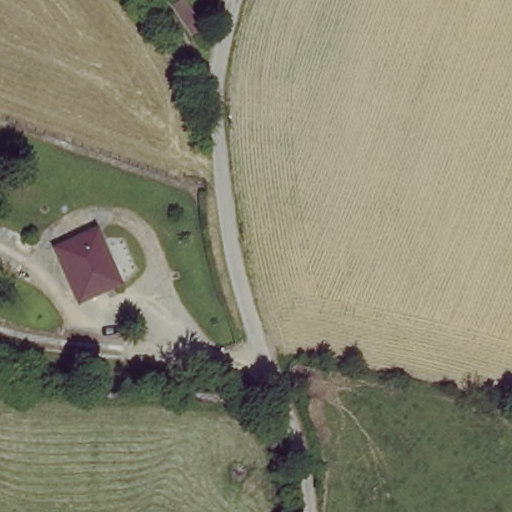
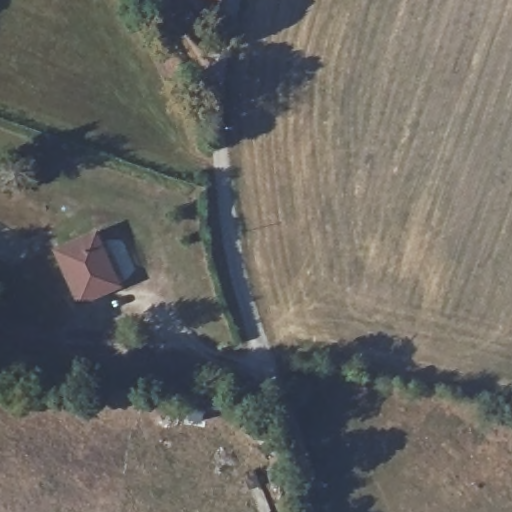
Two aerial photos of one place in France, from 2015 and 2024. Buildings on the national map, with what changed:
unchanged [(109,287),(81,300),(58,249),(97,231),(115,271),(120,282),(109,287)]
unchanged [(238,415),(237,430),(221,428),(222,413),(238,415)]

